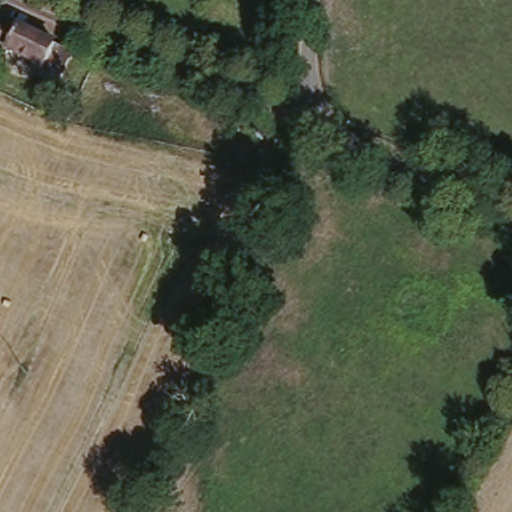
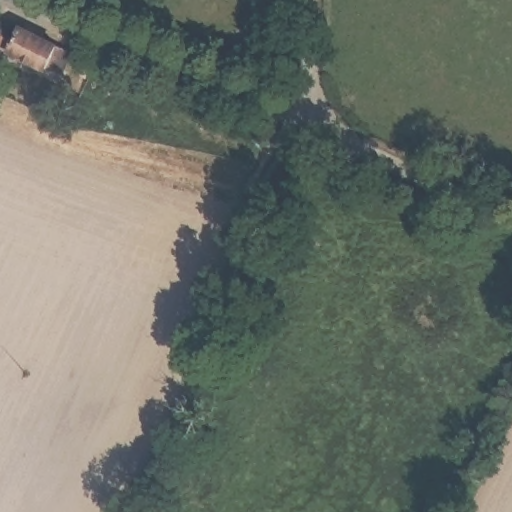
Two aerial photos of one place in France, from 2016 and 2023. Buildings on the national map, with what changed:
unchanged [(46,73),(25,64),(0,53),(0,24),(25,35),(29,29),(59,42),(97,57),(87,77),(51,61),(46,73)]

